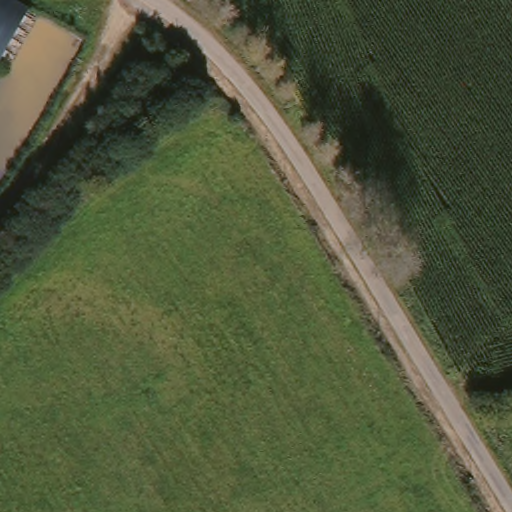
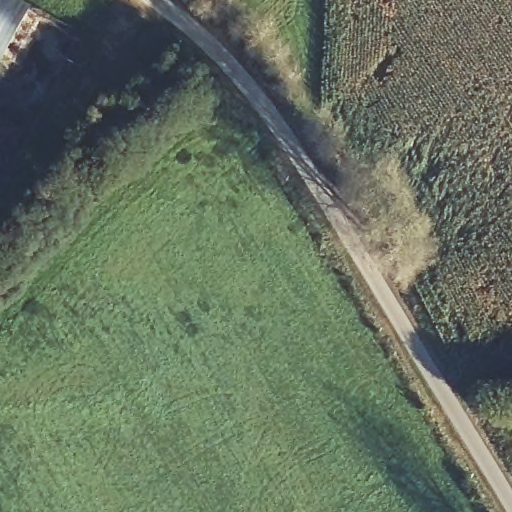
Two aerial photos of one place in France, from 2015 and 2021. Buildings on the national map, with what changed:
unchanged [(0,59),(0,0),(17,0),(33,10),(1,60),(0,59)]

